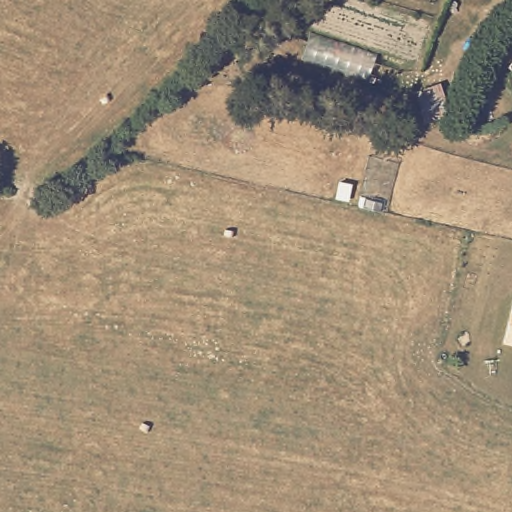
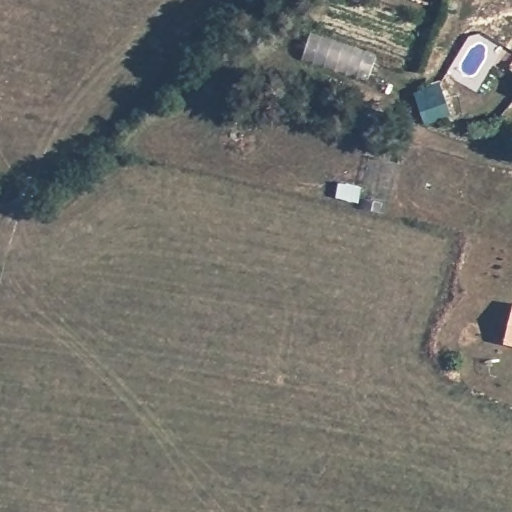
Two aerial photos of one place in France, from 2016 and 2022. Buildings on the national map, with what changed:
unchanged [(442,117),(425,122),(421,111),(418,101),(433,95),(437,105),(442,117)]
unchanged [(502,343),(512,306),(512,346),(502,343)]

